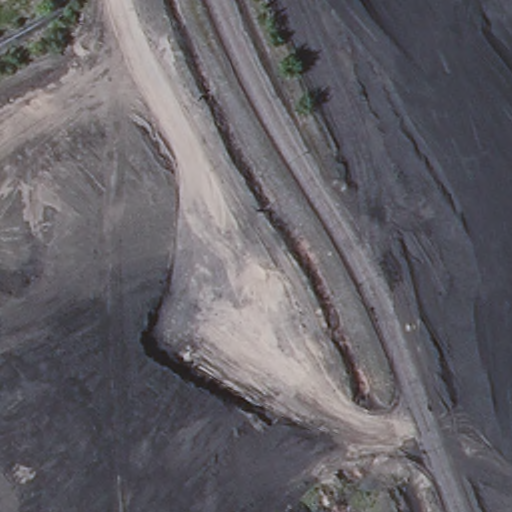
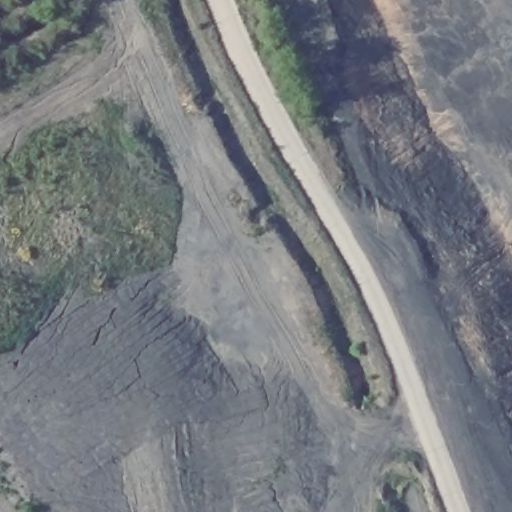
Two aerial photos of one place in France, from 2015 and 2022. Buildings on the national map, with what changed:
[]

